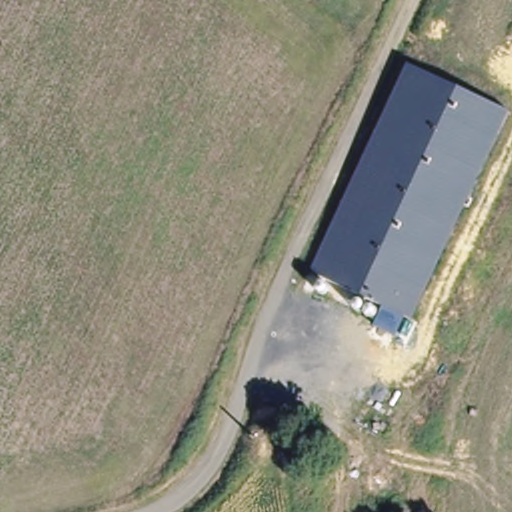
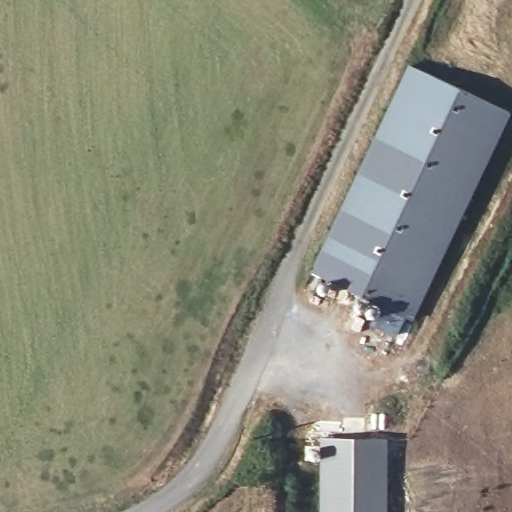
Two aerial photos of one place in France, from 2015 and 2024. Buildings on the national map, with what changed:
unchanged [(511,113),(413,321),(405,316),(396,336),(373,324),(375,319),(352,308),(358,296),(333,283),(327,292),(320,288),(325,279),(312,272),(409,63),(511,113)]
new [(387,433),(387,512),(322,512),(323,433),(387,433)]

